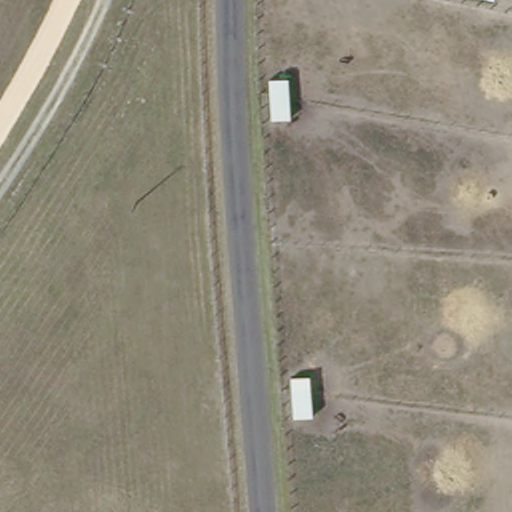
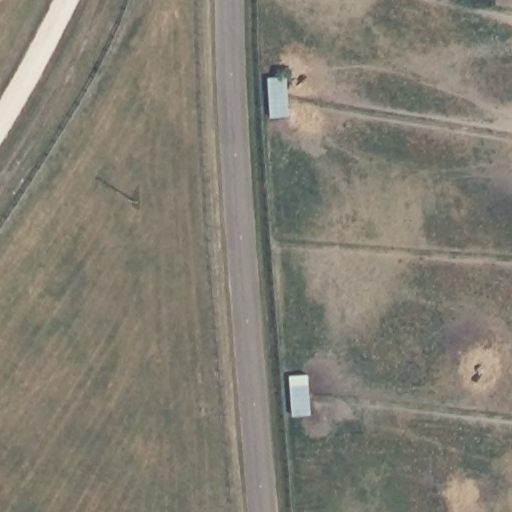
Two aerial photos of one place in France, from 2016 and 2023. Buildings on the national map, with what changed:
unchanged [(291,78),(294,117),(272,118),(270,80),(291,78)]
unchanged [(311,376),(312,414),(293,414),(290,376),(311,376)]

